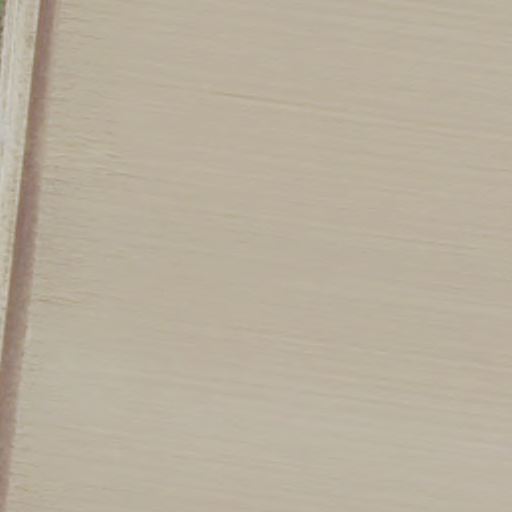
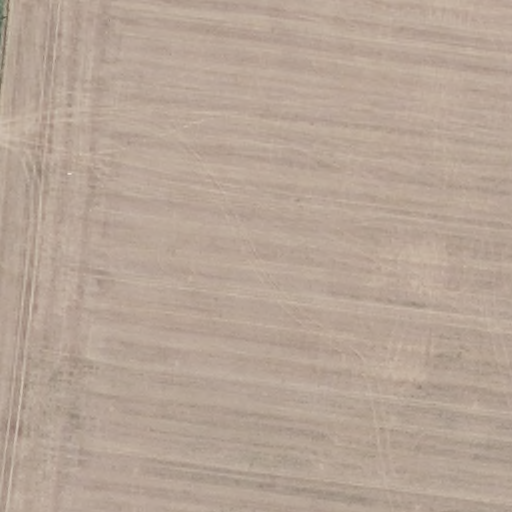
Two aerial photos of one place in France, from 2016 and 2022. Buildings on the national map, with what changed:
[]

